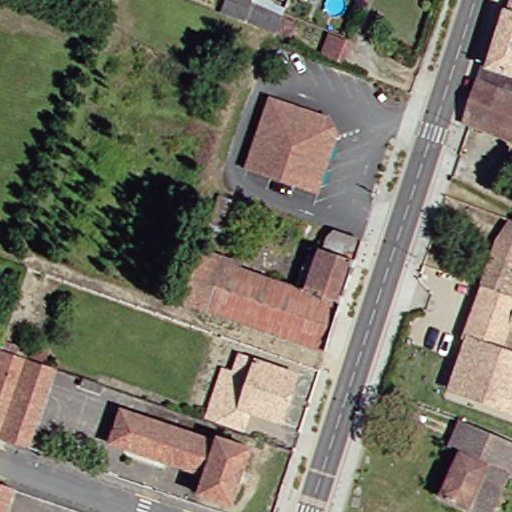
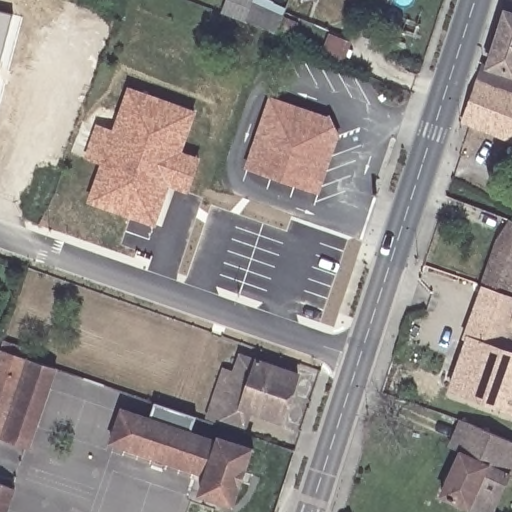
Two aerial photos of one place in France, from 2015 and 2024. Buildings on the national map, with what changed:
unchanged [(257,25),(235,18),(215,10),(218,0),(227,0),(240,4),(241,0),(263,7),(265,3),(278,7),(275,13),(275,16),(289,23),(283,36),(278,33),(270,29),(257,25)]
new [(306,0),(321,0),(319,5),(306,0)]
unchanged [(480,68),(488,70),(506,14),(509,4),(512,4),(512,95),(476,82),(480,68)]
new [(0,12),(12,14),(0,59),(0,12)]
unchanged [(317,54),(323,33),(330,36),(340,39),(334,59),(317,54)]
new [(0,84),(0,80),(1,80),(0,84)]
unchanged [(462,124),(476,82),(512,95),(512,144),(462,124)]
new [(182,151),(201,158),(188,194),(170,187),(156,228),(86,203),(100,165),(84,159),(95,123),(113,129),(127,87),(197,111),(182,151)]
unchanged [(246,160),(270,91),(326,111),(336,128),(316,185),(246,160)]
unchanged [(475,284),(502,216),(512,221),(512,295),(475,284)]
demolished [(321,351),(175,302),(191,253),(288,286),(301,247),(306,244),(318,248),(322,234),(330,228),(357,239),(321,351)]
unchanged [(496,319),(494,327),(512,334),(512,386),(504,408),(439,387),(459,337),(456,335),(475,284),(512,295),(512,323),(496,319)]
unchanged [(0,351),(50,369),(24,447),(0,438),(0,351)]
unchanged [(199,420),(210,389),(221,393),(236,353),(291,373),(275,420),(244,409),(236,433),(199,420)]
unchanged [(90,393),(72,387),(75,377),(92,384),(90,393)]
unchanged [(245,446),(226,504),(192,493),(199,474),(105,441),(115,408),(210,439),(212,434),(245,446)]
unchanged [(502,478),(486,512),(474,512),(436,495),(458,449),(445,443),(457,418),(470,424),(507,440),(503,450),(512,454),(512,482),(502,478)]
unchanged [(0,486),(8,489),(0,512),(0,486)]

